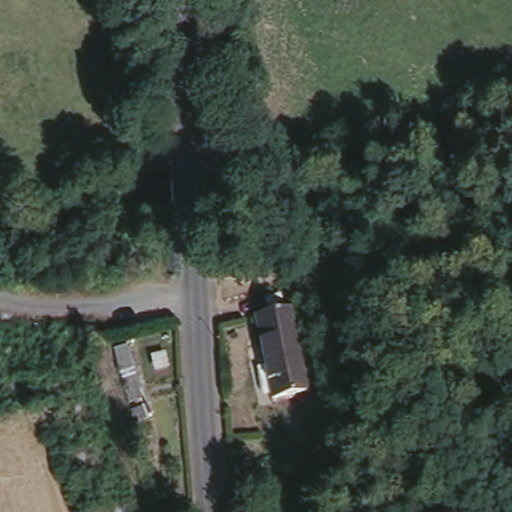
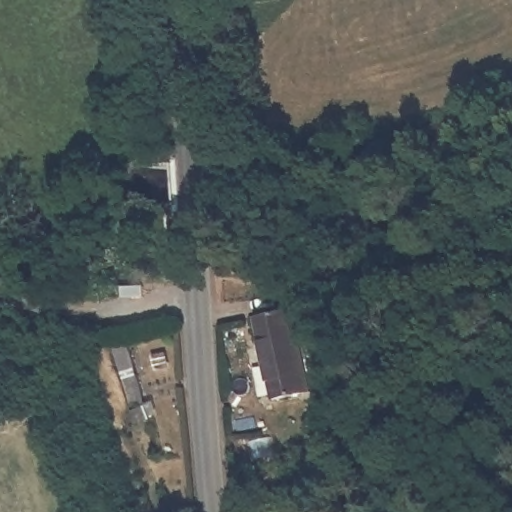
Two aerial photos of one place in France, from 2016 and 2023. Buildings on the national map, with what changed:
unchanged [(289,307),(304,392),(272,398),(256,313),(289,307)]
unchanged [(117,348),(133,401),(119,404),(103,353),(117,348)]
unchanged [(140,409),(144,421),(138,421),(139,426),(121,429),(117,415),(140,409)]

